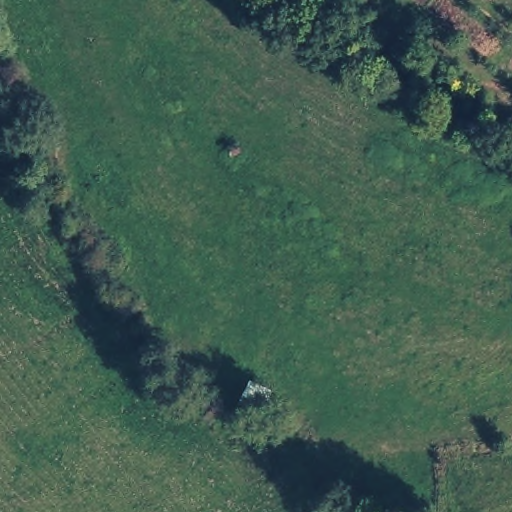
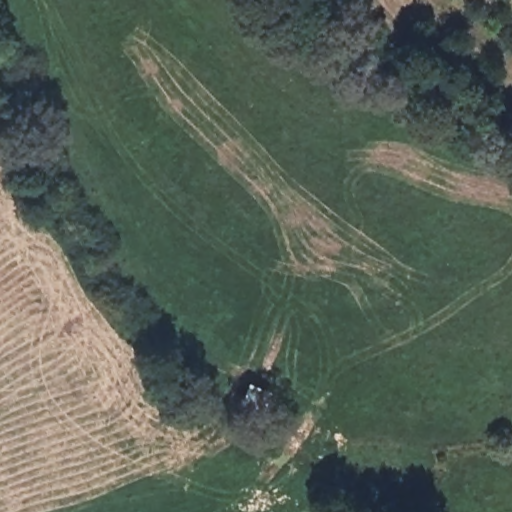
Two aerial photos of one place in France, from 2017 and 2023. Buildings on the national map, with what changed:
unchanged [(266,393),(265,413),(243,413),(244,393),(266,393)]

